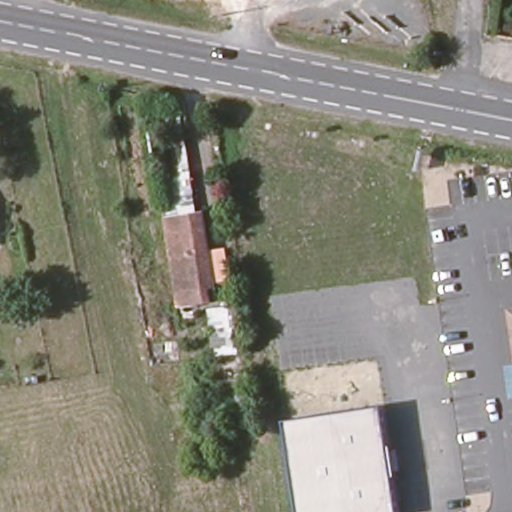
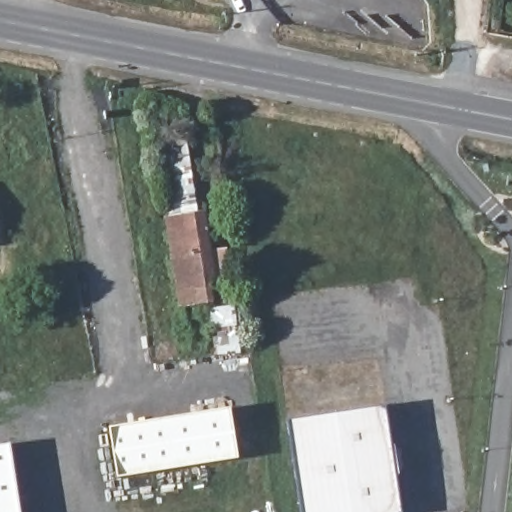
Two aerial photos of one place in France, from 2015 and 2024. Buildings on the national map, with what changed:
unchanged [(153,117),(186,112),(200,212),(166,217),(153,117)]
unchanged [(200,212),(206,212),(218,285),(194,289),(196,301),(181,303),(167,219),(200,212)]
unchanged [(235,300),(243,375),(217,377),(206,302),(215,302),(235,300)]
demolished [(512,341),(508,307),(512,307),(512,341)]
unchanged [(288,420),(385,405),(400,512),(301,512),(288,420)]
new [(117,478),(108,427),(230,407),(238,458),(117,478)]
new [(19,512),(0,512),(0,448),(9,447),(19,512)]

